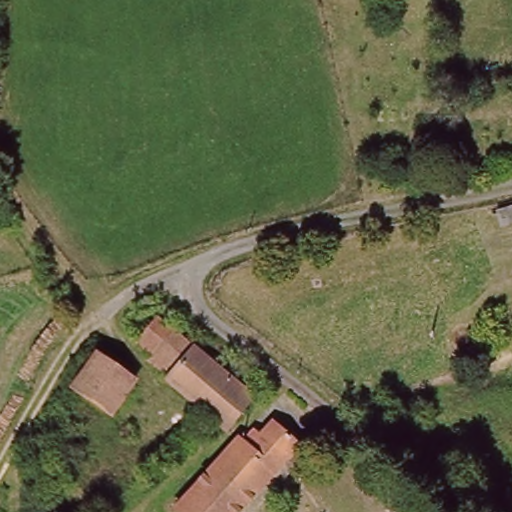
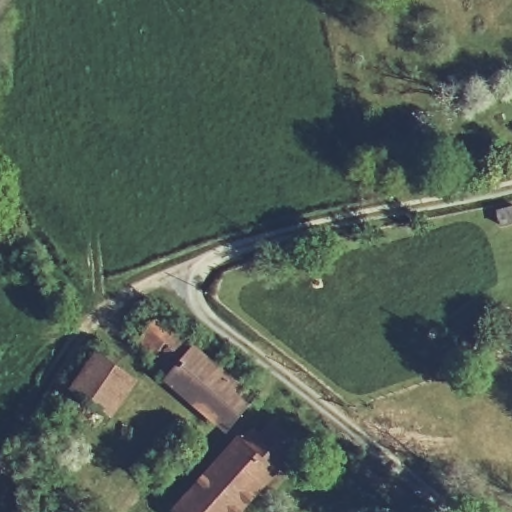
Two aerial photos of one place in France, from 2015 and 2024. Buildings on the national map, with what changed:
unchanged [(512,203),(512,223),(502,226),(497,207),(512,203)]
unchanged [(224,426),(146,356),(152,348),(142,340),(160,316),(236,381),(252,394),(224,426)]
unchanged [(129,380),(106,414),(78,389),(102,358),(129,380)]
unchanged [(264,427),(296,453),(244,512),(176,512),(209,474),(248,430),(255,437),(264,427)]

